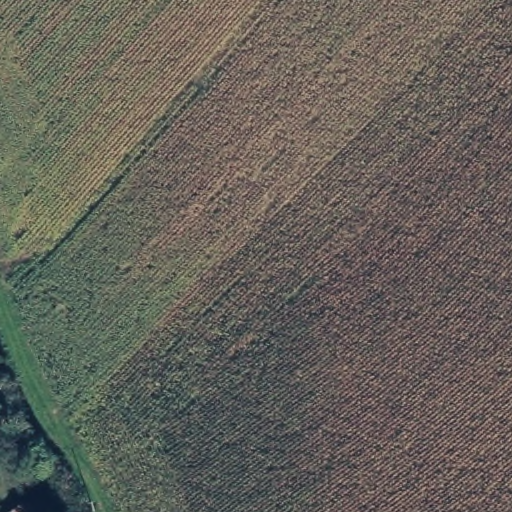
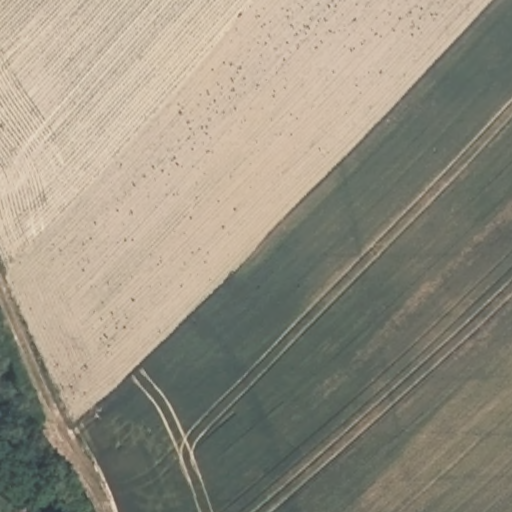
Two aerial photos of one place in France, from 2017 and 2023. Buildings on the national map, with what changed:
unchanged [(45,512),(14,512),(36,500),(45,512)]

